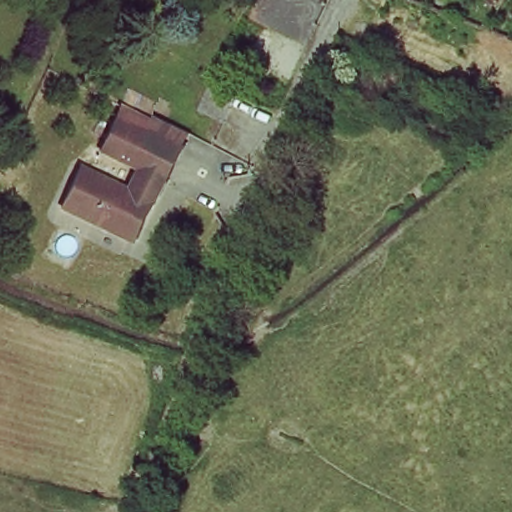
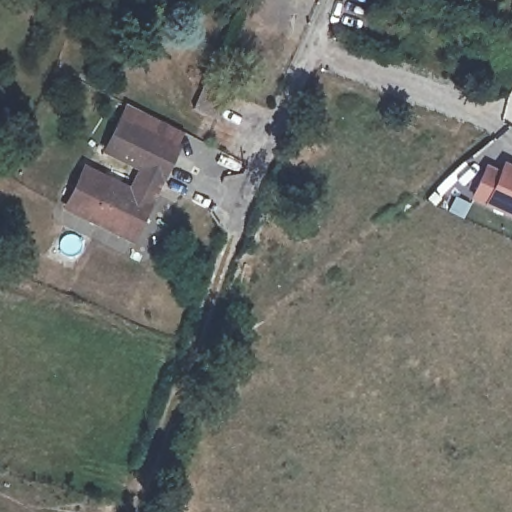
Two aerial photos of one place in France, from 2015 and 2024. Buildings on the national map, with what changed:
unchanged [(233,95),(221,123),(209,118),(196,113),(209,84),(222,90),(233,95)]
unchanged [(134,185),(143,166),(109,149),(125,115),(179,143),(153,194),(131,232),(68,200),(90,163),(134,185)]
unchanged [(21,135),(39,141),(33,159),(15,153),(21,135)]
new [(484,205),(471,198),(486,163),(499,169),(503,161),(512,164),(512,217),(484,205)]

